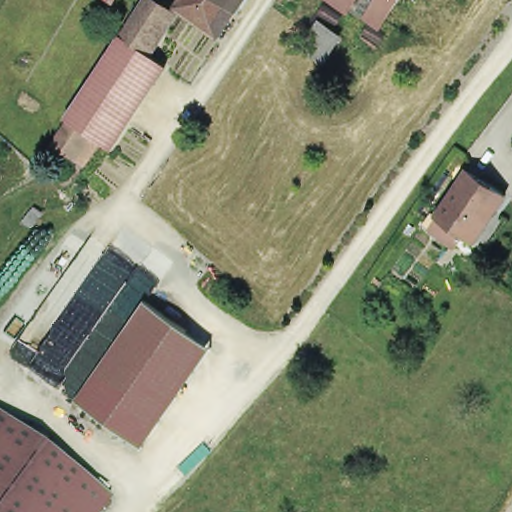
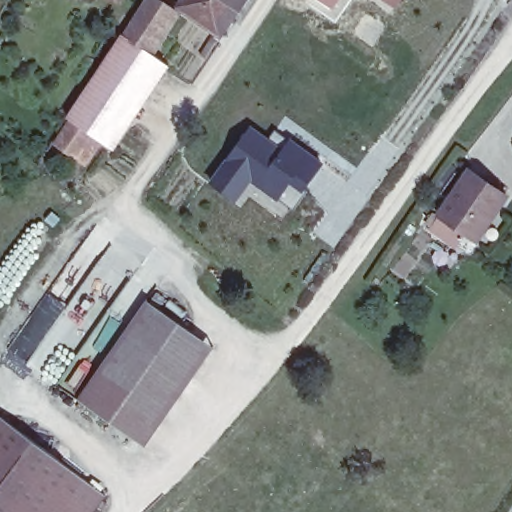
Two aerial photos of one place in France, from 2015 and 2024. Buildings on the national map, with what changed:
unchanged [(146,0),(164,0),(176,8),(148,46),(125,31),(146,0)]
unchanged [(182,0),(229,0),(235,4),(219,29),(180,3),(182,0)]
unchanged [(235,4),(229,0),(239,0),(235,4)]
unchanged [(350,10),(336,0),(357,0),(354,4),(359,7),(355,13),(350,10)]
unchanged [(376,0),(400,0),(397,4),(385,20),(369,9),(376,0)]
demolished [(310,43),(318,32),(327,21),(341,31),(333,43),(326,53),(310,43)]
unchanged [(57,138),(72,115),(67,111),(120,31),(165,60),(111,140),(90,126),(75,149),(57,138)]
new [(247,125),(277,147),(287,138),(320,162),(298,190),(285,182),(276,198),(252,179),(230,202),(205,182),(247,125)]
unchanged [(440,211),(470,167),(507,192),(477,236),(464,228),(457,238),(434,223),(442,212),(440,211)]
unchanged [(145,445),(79,398),(148,299),(215,345),(145,445)]
unchanged [(90,512),(0,512),(0,415),(102,495),(90,512)]

